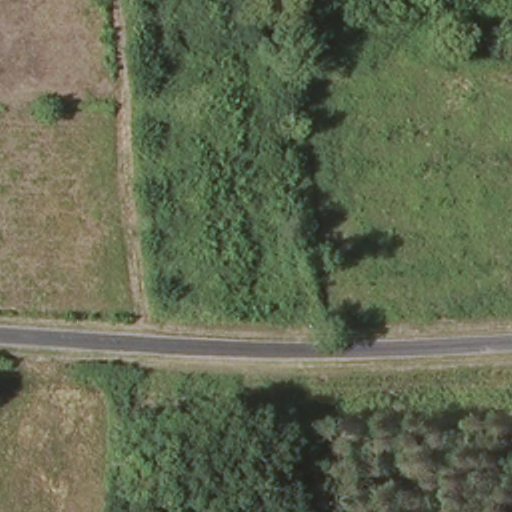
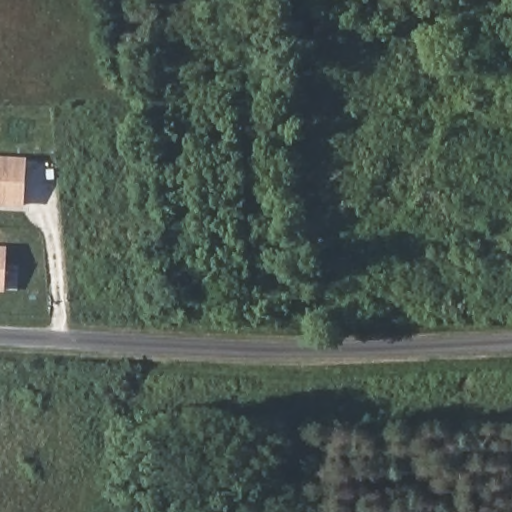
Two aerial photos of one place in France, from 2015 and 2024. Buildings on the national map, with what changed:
new [(27,157),(24,208),(0,206),(0,155),(27,157)]
new [(8,245),(5,292),(0,292),(0,245),(8,245)]

